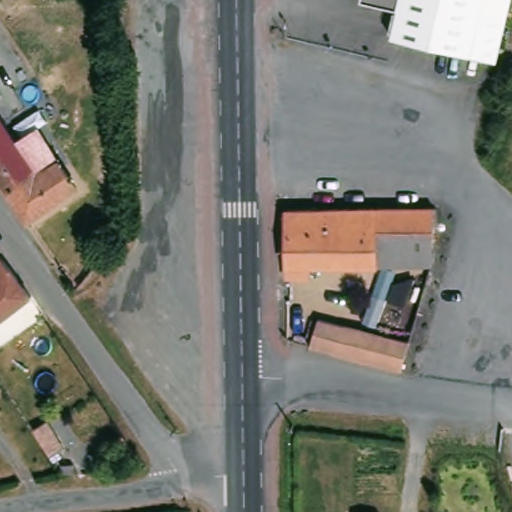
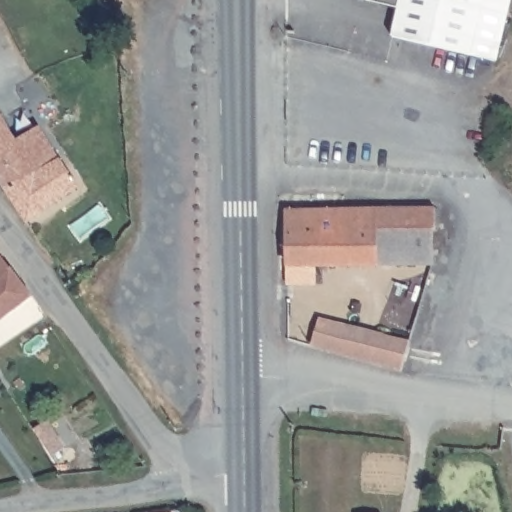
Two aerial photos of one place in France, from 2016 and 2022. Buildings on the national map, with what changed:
unchanged [(512,7),(501,59),(399,39),(405,9),(367,1),(367,0),(512,0),(512,7)]
unchanged [(0,174),(0,107),(25,143),(45,129),(84,186),(33,220),(0,174)]
unchanged [(438,230),(435,231),(435,264),(311,264),(311,276),(291,275),(291,210),(437,206),(438,230)]
unchanged [(0,320),(0,241),(36,291),(0,320)]
unchanged [(315,344),(322,317),(414,342),(407,368),(315,344)]

